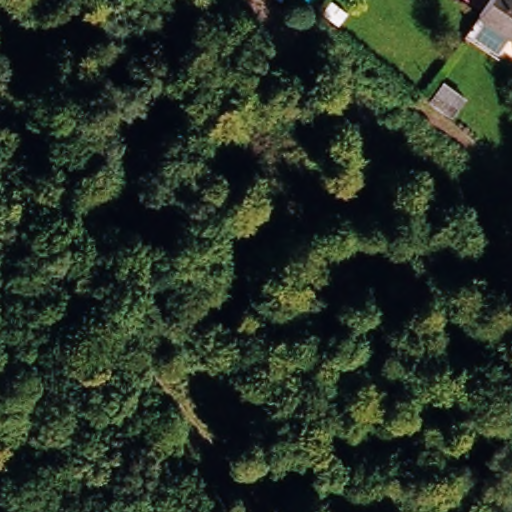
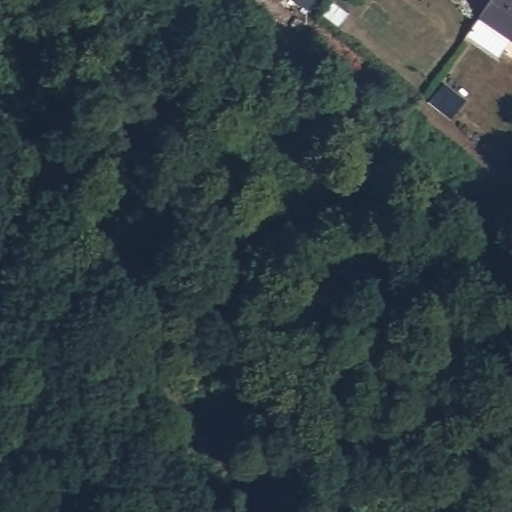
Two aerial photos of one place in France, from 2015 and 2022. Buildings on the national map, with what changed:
unchanged [(478,16),(489,0),(512,0),(512,40),(478,16)]

